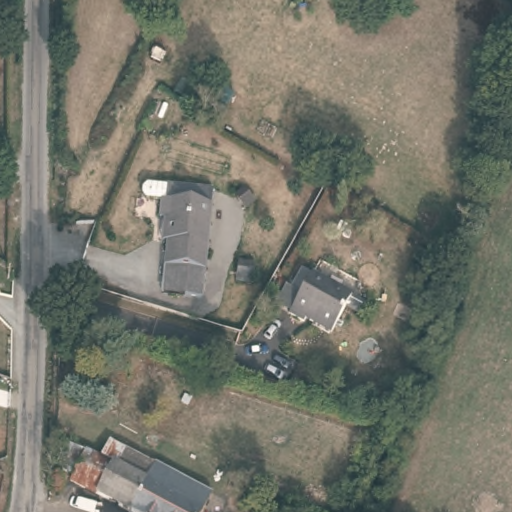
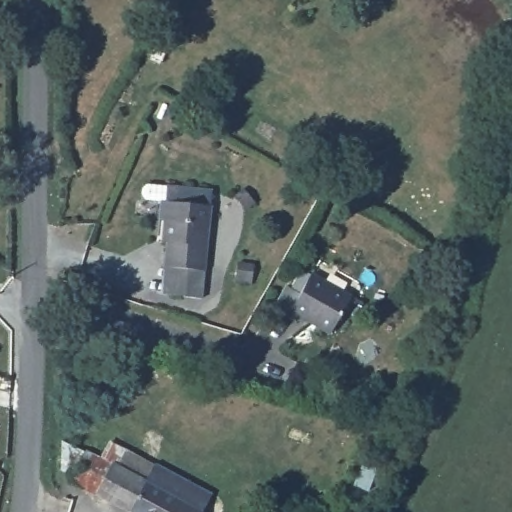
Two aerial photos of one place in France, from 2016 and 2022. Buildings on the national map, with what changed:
unchanged [(165,218),(157,218),(159,202),(164,202),(165,190),(175,190),(199,190),(206,192),(206,207),(199,297),(181,296),(160,294),(161,267),(165,218)]
unchanged [(421,249),(434,254),(427,272),(415,266),(421,249)]
unchanged [(333,338),(310,326),(304,328),(291,320),(282,315),(306,274),(315,278),(355,299),(333,338)]
unchanged [(107,440),(209,490),(198,512),(128,512),(69,483),(71,476),(59,468),(65,441),(85,450),(99,457),(107,440)]

